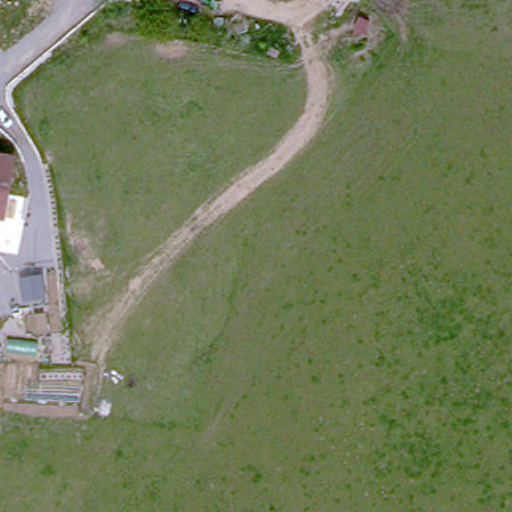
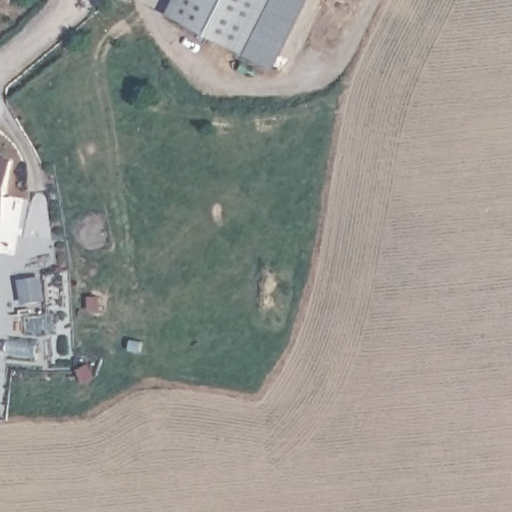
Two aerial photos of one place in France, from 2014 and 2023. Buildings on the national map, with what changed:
new [(275,71),(242,54),(167,13),(174,0),(312,0),(275,71)]
unchanged [(8,180),(2,217),(0,217),(0,157),(12,159),(8,180)]

